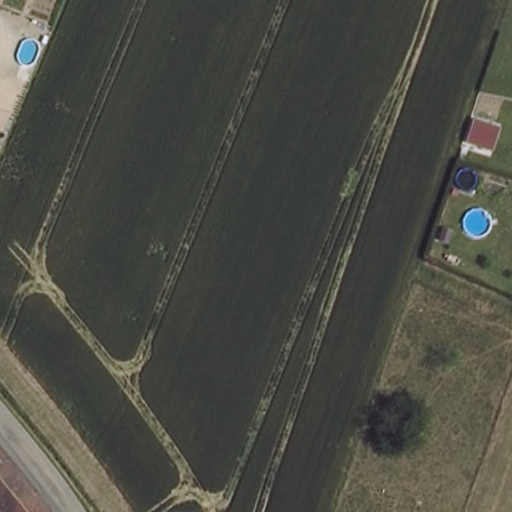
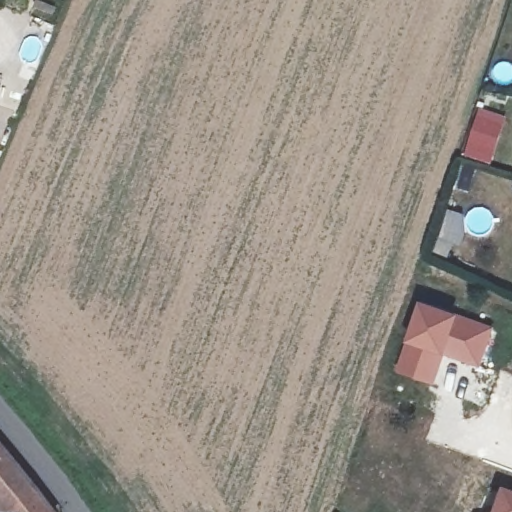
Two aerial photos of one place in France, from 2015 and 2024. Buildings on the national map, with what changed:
new [(463,156),(479,107),(507,117),(490,165),(463,156)]
new [(447,209),(467,215),(460,245),(455,244),(450,257),(433,251),(447,209)]
new [(419,301),(493,326),(479,367),(444,356),(434,385),(394,372),(419,301)]
unchanged [(0,512),(0,455),(48,512),(0,512)]
new [(512,494),(512,512),(490,512),(499,488),(512,494)]

